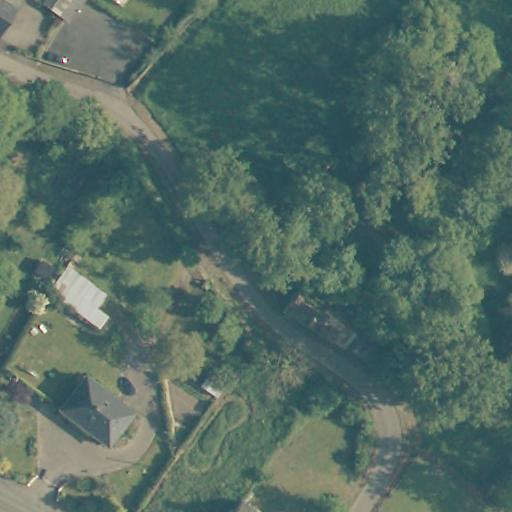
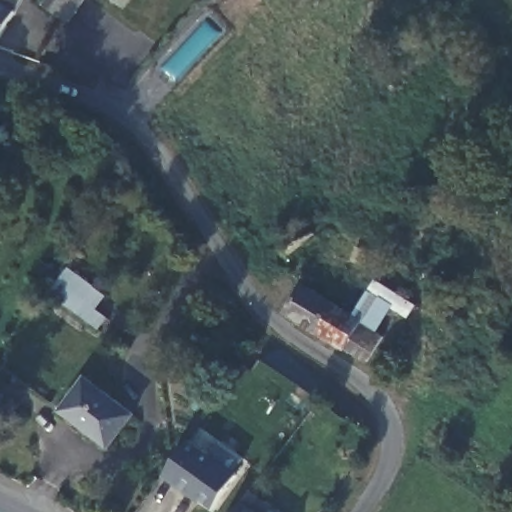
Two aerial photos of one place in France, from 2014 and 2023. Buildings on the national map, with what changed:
unchanged [(21,0),(0,32),(0,0),(21,0)]
unchanged [(48,0),(85,0),(70,21),(45,5),(48,0)]
unchanged [(360,358),(337,342),(286,303),(305,276),(316,283),(322,272),(358,295),(349,306),(359,313),(355,318),(377,335),(360,358)]
unchanged [(137,413),(111,445),(64,410),(90,377),(137,413)]
new [(212,456),(223,442),(244,458),(234,471),(237,474),(213,509),(164,475),(190,439),(212,456)]
unchanged [(249,512),(228,512),(236,502),(249,512)]

